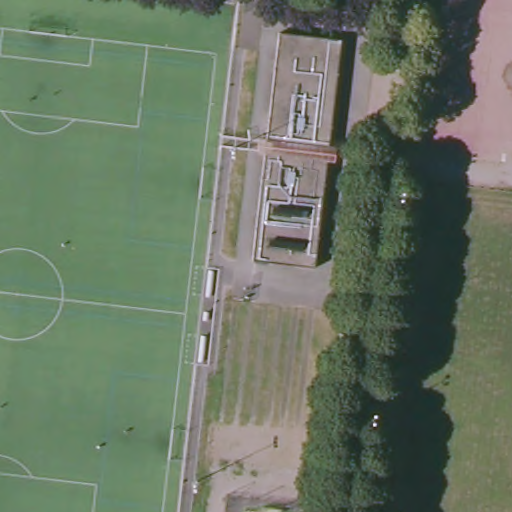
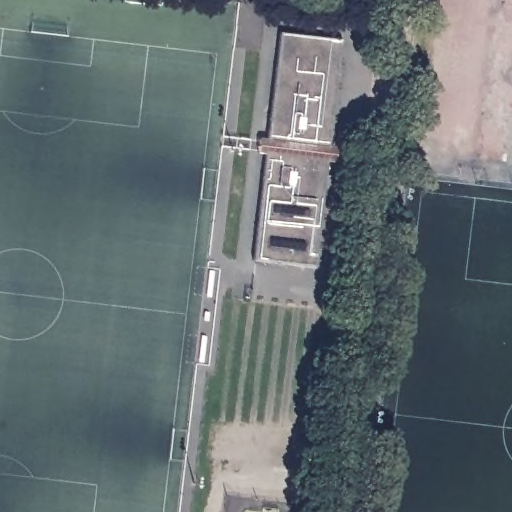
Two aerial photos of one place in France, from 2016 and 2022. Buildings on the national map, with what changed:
unchanged [(268,151),(275,151),(275,141),(270,141),(282,32),(310,35),(308,43),(315,44),(317,36),(344,39),(332,148),(326,147),(325,157),(331,158),(319,267),(257,259),(268,151)]

